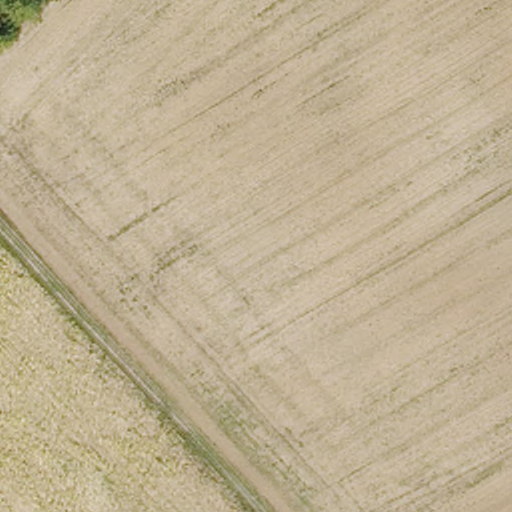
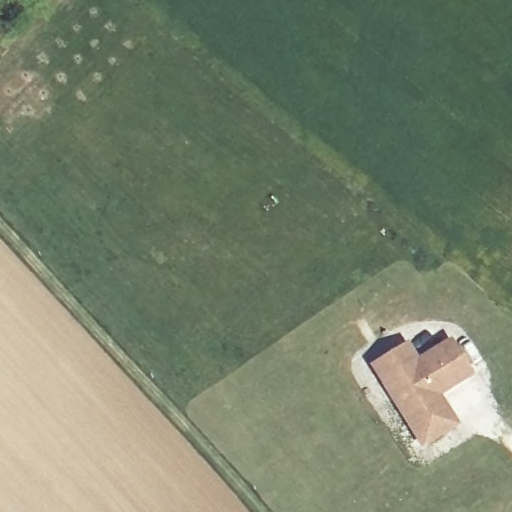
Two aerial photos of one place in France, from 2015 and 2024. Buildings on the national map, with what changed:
new [(369,363),(408,340),(419,357),(451,338),(473,375),(439,396),(457,425),(421,450),(369,363)]

